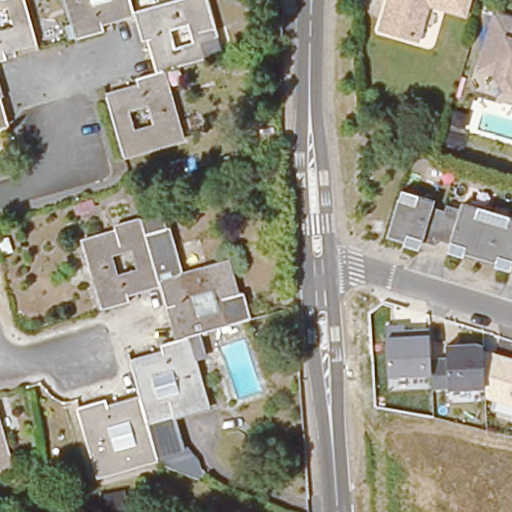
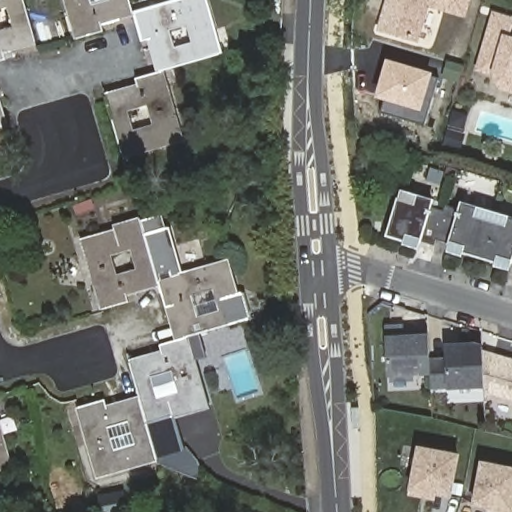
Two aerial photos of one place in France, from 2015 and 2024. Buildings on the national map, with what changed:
unchanged [(5,65),(0,66),(0,36),(13,32),(8,12),(0,14),(0,0),(23,0),(36,45),(2,55),(5,65)]
unchanged [(104,31),(86,36),(77,39),(66,0),(130,0),(134,11),(100,21),(104,31)]
unchanged [(141,40),(136,22),(135,15),(187,0),(204,0),(220,54),(162,70),(160,71),(150,38),(141,40)]
unchanged [(381,25),(388,0),(428,0),(417,35),(381,25)]
unchanged [(431,0),(467,0),(465,10),(431,0)]
unchanged [(506,82),(499,68),(483,63),(500,10),(512,13),(512,33),(512,84),(506,82)]
new [(385,100),(375,97),(386,59),(432,73),(431,76),(438,78),(425,125),(380,113),(385,100)]
unchanged [(123,157),(121,150),(106,96),(139,88),(136,79),(151,74),(160,71),(162,70),(182,140),(123,157)]
unchanged [(0,130),(0,101),(4,115),(8,128),(0,130)]
unchanged [(395,185),(395,190),(427,199),(425,205),(456,215),(460,204),(512,218),(512,262),(436,240),(433,245),(383,234),(384,229),(360,223),(371,179),(395,185)]
unchanged [(158,281),(159,283),(124,293),(126,302),(114,306),(104,309),(85,241),(115,232),(114,227),(141,220),(145,236),(158,281)]
unchanged [(168,230),(180,275),(227,261),(237,296),(241,295),(248,318),(240,320),(186,336),(184,337),(174,301),(165,304),(161,292),(159,283),(158,281),(145,236),(168,230)]
unchanged [(486,399),(485,388),(448,389),(432,388),(431,375),(388,377),(385,337),(385,326),(405,325),(405,328),(428,327),(429,332),(431,356),(447,355),(446,345),(475,342),(481,345),(482,349),(512,358),(512,406),(486,399)]
unchanged [(206,405),(172,415),(182,450),(156,457),(151,440),(151,436),(147,422),(140,400),(137,390),(130,363),(162,355),(160,345),(175,340),(184,337),(186,336),(206,405)]
unchanged [(147,422),(151,436),(151,440),(156,457),(157,458),(99,475),(79,407),(105,400),(107,409),(140,400),(147,422)]
unchanged [(0,417),(15,470),(0,475),(0,417)]
new [(417,444),(460,453),(451,500),(436,496),(435,501),(408,495),(409,491),(407,490),(417,444)]
new [(471,506),(480,460),(512,466),(512,512),(487,512),(487,509),(471,506)]

